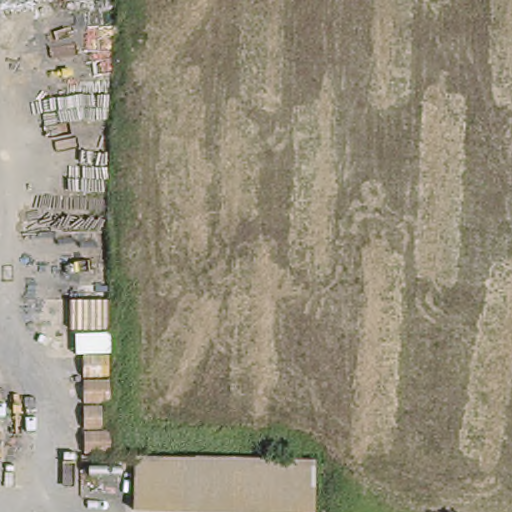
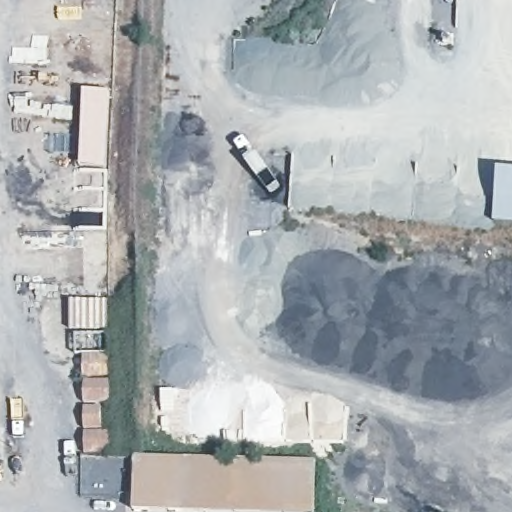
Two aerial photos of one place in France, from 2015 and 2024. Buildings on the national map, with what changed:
new [(110,91),(105,167),(81,165),(84,91),(110,91)]
new [(512,224),(496,223),(499,170),(512,171),(512,224)]
unchanged [(190,464),(317,466),(316,512),(139,512),(139,463),(190,464)]

